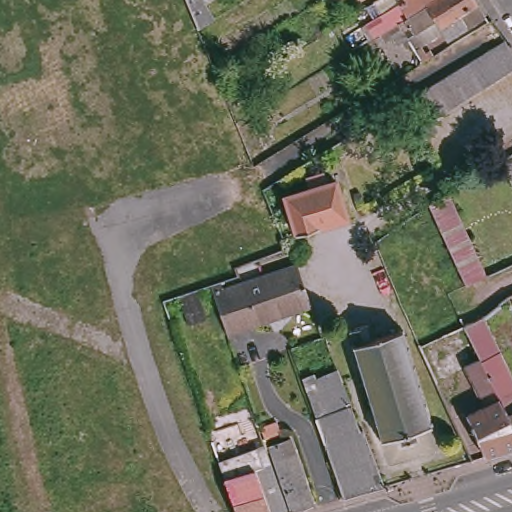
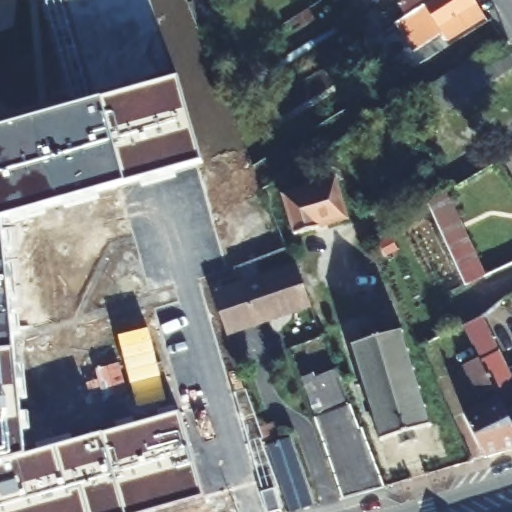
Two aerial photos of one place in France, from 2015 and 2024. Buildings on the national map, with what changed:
unchanged [(342,34),(398,0),(427,0),(393,20),(350,47),(342,34)]
unchanged [(480,14),(442,37),(437,28),(422,36),(418,35),(415,32),(413,29),(413,28),(408,30),(405,25),(398,29),(393,20),(427,0),(472,0),(480,14)]
unchanged [(401,119),(415,109),(406,96),(495,42),(511,67),(422,120),(431,133),(418,142),(401,119)]
new [(125,184),(0,218),(0,130),(101,101),(178,79),(203,163),(125,184)]
demolished [(462,188),(456,180),(467,174),(489,160),(495,169),(462,188)]
unchanged [(307,185),(305,175),(323,170),(326,180),(336,177),(347,215),(295,230),(294,228),(296,227),(286,190),(307,185)]
unchanged [(450,184),(487,271),(466,280),(430,196),(450,184)]
new [(25,454),(101,434),(177,412),(201,497),(148,512),(0,512),(0,218),(14,350),(25,454)]
demolished [(394,228),(416,277),(438,268),(449,292),(407,311),(373,236),(383,230),(398,220),(400,225),(394,228)]
unchanged [(307,304),(255,322),(240,282),(294,263),(307,304)]
unchanged [(211,284),(219,281),(221,289),(240,282),(255,322),(228,331),(211,284)]
unchanged [(491,325),(480,301),(506,289),(512,286),(512,315),(491,325)]
demolished [(436,320),(445,338),(442,339),(428,346),(422,348),(413,329),(436,320)]
unchanged [(401,448),(398,438),(386,442),(385,443),(385,446),(380,443),(381,440),(376,423),(373,423),(373,420),(375,419),(370,404),(368,404),(367,403),(368,401),(370,400),(365,385),(363,385),(362,382),(364,381),(360,367),(357,367),(356,364),(358,362),(354,347),(352,347),(351,346),(351,345),(352,345),(348,329),(367,324),(372,339),(400,331),(400,329),(405,331),(404,332),(402,333),(407,350),(410,349),(410,352),(408,353),(412,368),(415,368),(415,371),(413,371),(418,387),(420,387),(421,390),(420,392),(423,405),(425,405),(426,408),(425,409),(430,426),(430,425),(432,426),(432,427),(430,428),(430,430),(431,431),(430,431),(428,431),(428,430),(416,433),(419,443),(401,448)]
unchanged [(461,409),(480,403),(460,359),(476,352),(476,353),(495,345),(512,378),(512,441),(482,449),(461,409)]
unchanged [(340,496),(293,381),(333,366),(380,484),(340,496)]
demolished [(266,463),(284,512),(236,512),(215,455),(252,443),(258,465),(266,463)]
demolished [(290,454),(308,502),(290,508),(272,460),(290,454)]
demolished [(5,495),(0,496),(0,475),(2,474),(5,495)]

